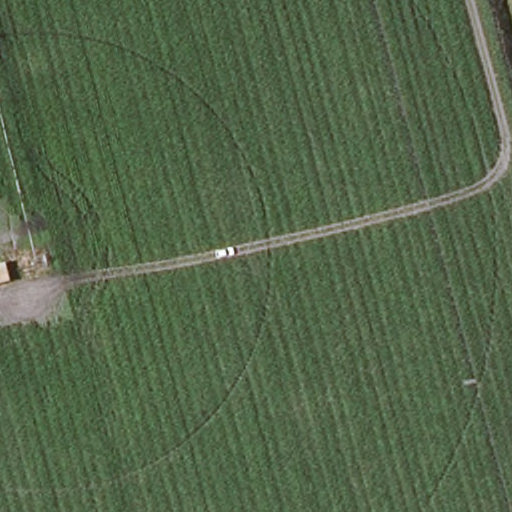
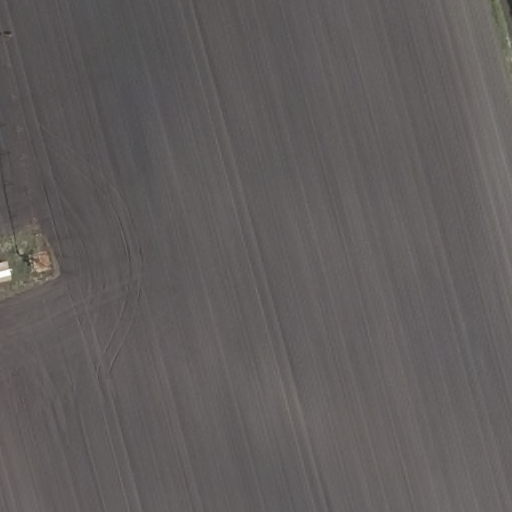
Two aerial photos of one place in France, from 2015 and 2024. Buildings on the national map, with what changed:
unchanged [(12,285),(0,287),(0,262),(7,260),(12,285)]

